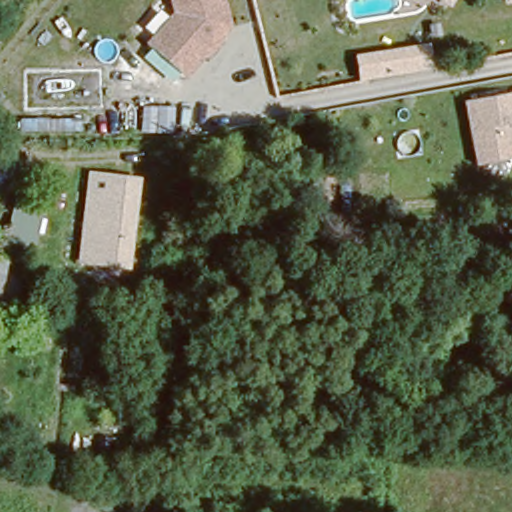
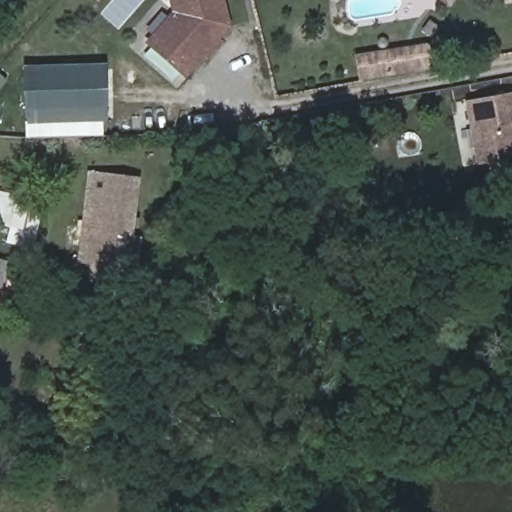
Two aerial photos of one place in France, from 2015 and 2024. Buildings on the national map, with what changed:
new [(95,0),(98,0),(96,2),(95,0)]
unchanged [(186,77),(145,42),(172,11),(169,0),(224,0),(231,26),(186,77)]
unchanged [(443,0),(450,0),(447,4),(443,0)]
unchanged [(430,43),(434,68),(359,81),(356,54),(430,43)]
new [(104,65),(106,108),(24,111),(25,67),(104,65)]
unchanged [(479,162),(470,98),(512,92),(512,156),(479,162)]
unchanged [(94,186),(137,190),(127,277),(84,272),(94,186)]
unchanged [(10,199),(36,204),(26,244),(25,251),(0,245),(0,241),(1,237),(10,199)]

